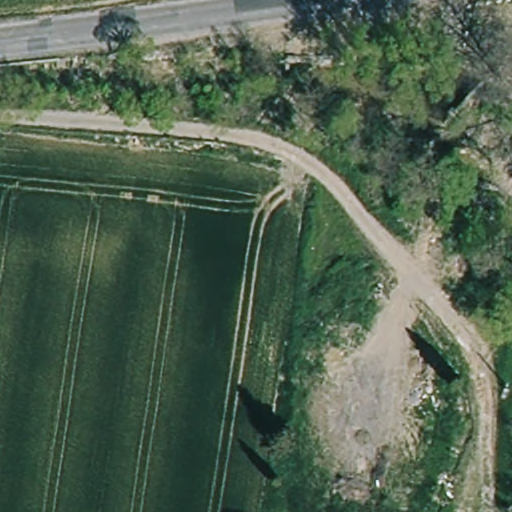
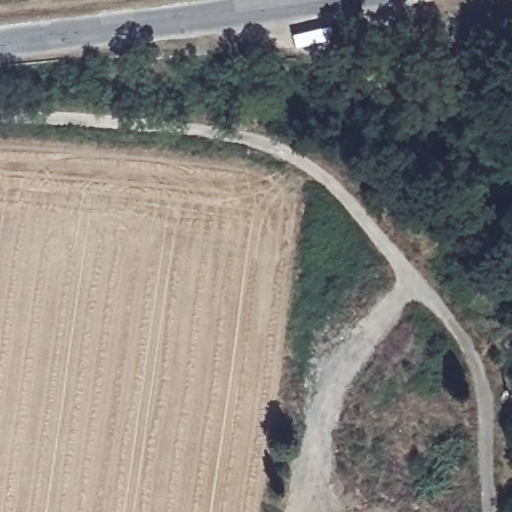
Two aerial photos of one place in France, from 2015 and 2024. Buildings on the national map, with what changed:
unchanged [(405,499),(404,507),(390,505),(390,497),(405,499)]

